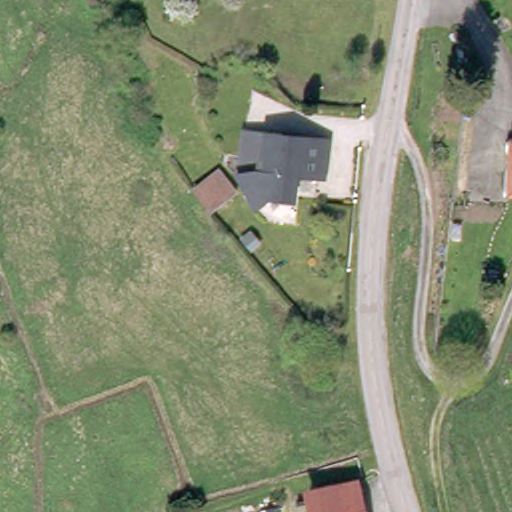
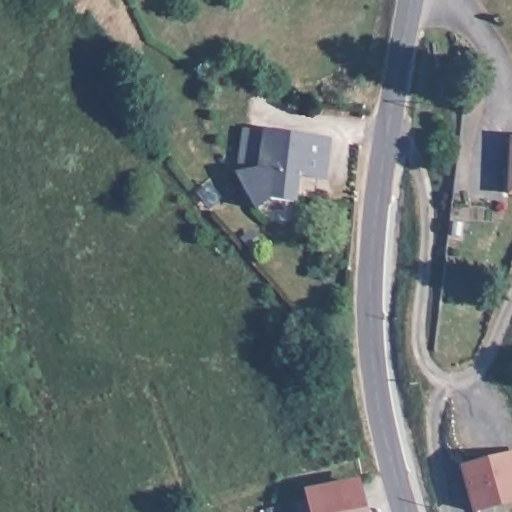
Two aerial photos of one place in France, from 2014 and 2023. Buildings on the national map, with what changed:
unchanged [(253,166),(258,129),(319,140),(313,175),(286,171),(281,204),(259,200),(246,207),(229,178),(253,166)]
unchanged [(512,170),(512,192),(511,192),(509,170),(512,170)]
unchanged [(212,172),(225,197),(218,201),(198,211),(185,186),(199,179),(212,172)]
new [(512,451),(512,503),(477,512),(469,512),(458,465),(512,451)]
unchanged [(351,485),(357,512),(308,512),(304,496),(351,485)]

